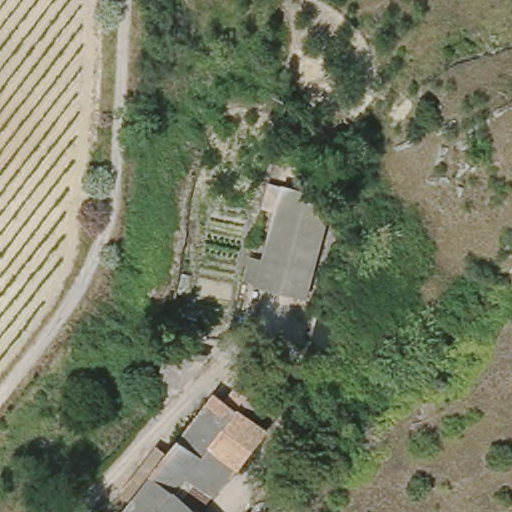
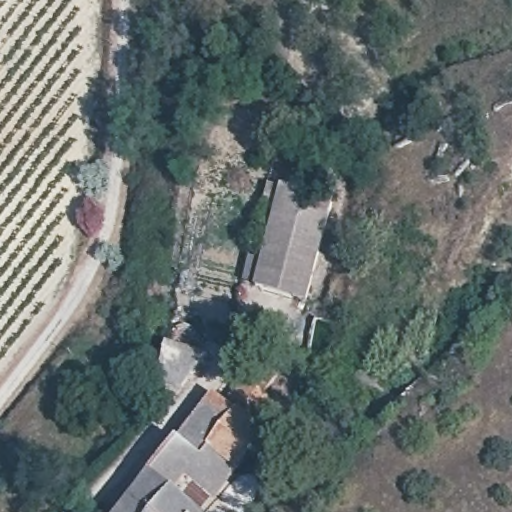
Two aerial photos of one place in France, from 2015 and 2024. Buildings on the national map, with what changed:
unchanged [(332,194),(311,293),(259,286),(282,185),(332,194)]
unchanged [(197,329),(188,344),(175,337),(182,323),(197,329)]
unchanged [(201,356),(191,390),(158,383),(167,344),(201,356)]
unchanged [(222,405),(241,379),(252,363),(274,377),(263,393),(272,399),(255,425),(266,433),(239,471),(209,450),(187,482),(175,498),(189,512),(126,512),(175,447),(211,398),(222,405)]
unchanged [(239,471),(216,502),(187,482),(209,450),(239,471)]

